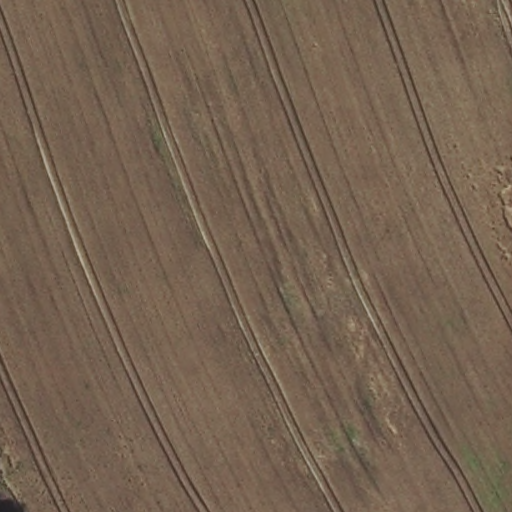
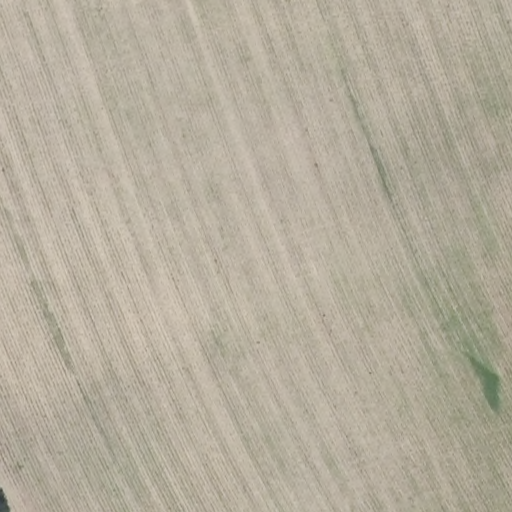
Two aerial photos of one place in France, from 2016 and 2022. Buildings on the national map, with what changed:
[]

